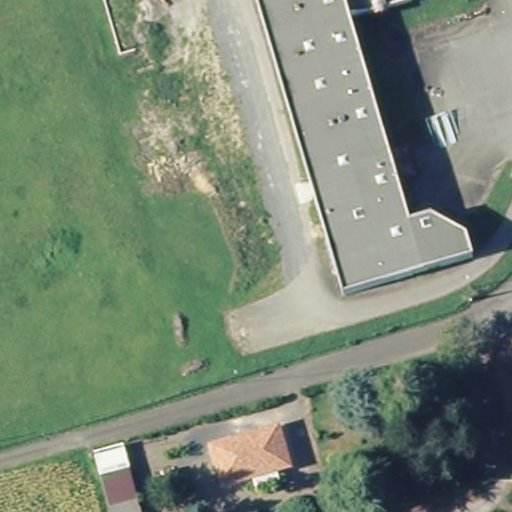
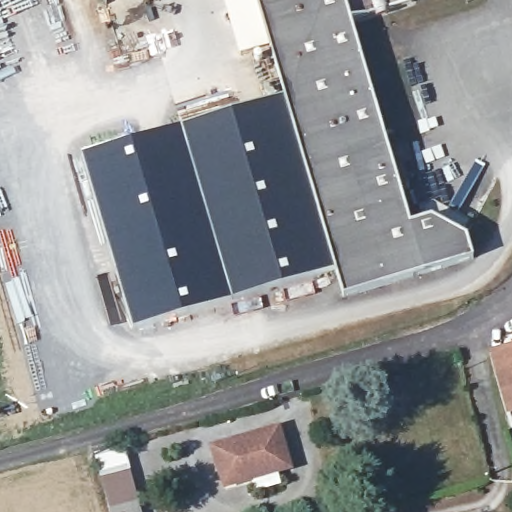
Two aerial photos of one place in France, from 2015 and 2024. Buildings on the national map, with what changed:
unchanged [(102,0),(106,0),(102,1),(102,0)]
new [(240,57),(223,0),(256,0),(268,49),(240,57)]
unchanged [(353,25),(405,227),(425,225),(461,245),(466,266),(336,301),(328,273),(282,98),(256,0),(412,0),(415,8),(353,25)]
new [(282,98),(328,273),(234,301),(184,128),(282,98)]
new [(184,128),(234,301),(136,326),(84,153),(184,128)]
unchanged [(512,347),(512,408),(505,410),(490,353),(512,347)]
unchanged [(249,491),(246,479),(221,486),(212,446),(276,428),(285,467),(267,472),(269,484),(249,491)]
unchanged [(97,452),(122,445),(129,474),(137,512),(112,512),(104,480),(97,452)]

